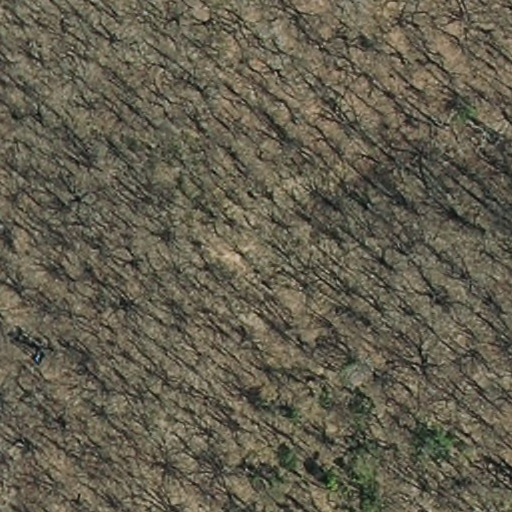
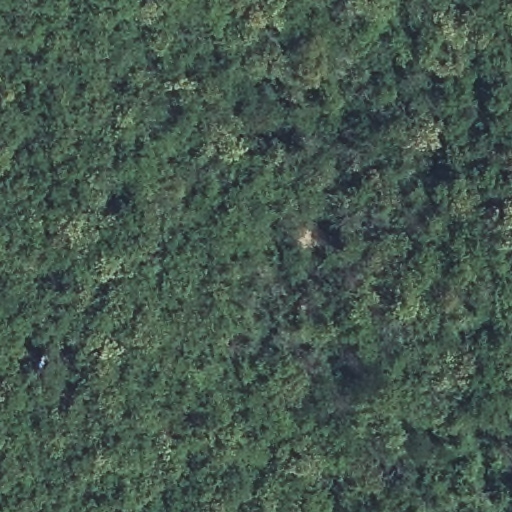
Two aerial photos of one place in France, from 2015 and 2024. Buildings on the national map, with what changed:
[]

